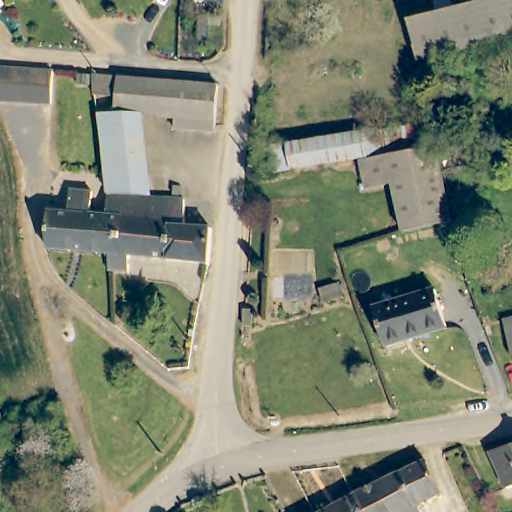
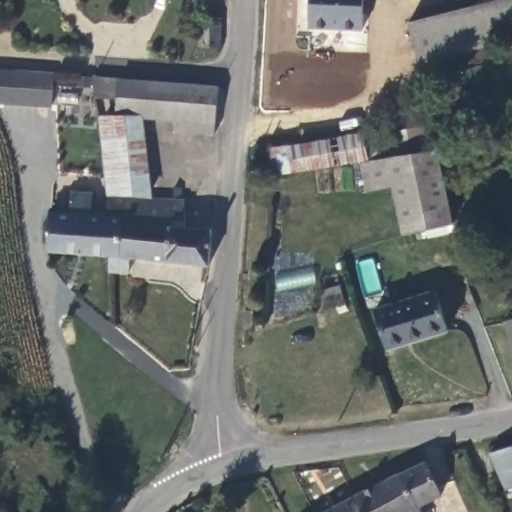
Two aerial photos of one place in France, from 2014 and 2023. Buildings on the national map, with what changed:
new [(365,30),(310,28),(310,0),(365,0),(365,30)]
unchanged [(407,25),(496,0),(512,0),(512,38),(439,60),(443,77),(423,82),(407,25)]
unchanged [(226,46),(206,45),(207,14),(229,15),(226,46)]
unchanged [(0,90),(0,64),(49,66),(53,101),(4,99),(0,90)]
unchanged [(115,114),(116,97),(95,95),(92,71),(107,74),(131,75),(142,76),(139,115),(115,114)]
unchanged [(142,76),(219,81),(215,121),(139,115),(142,76)]
unchanged [(105,139),(102,123),(140,119),(141,134),(149,196),(112,195),(105,139)]
unchanged [(428,125),(432,151),(363,162),(358,135),(428,125)]
unchanged [(286,174),(282,146),(358,135),(363,162),(286,174)]
unchanged [(447,225),(405,235),(394,186),(369,189),(363,162),(432,151),(447,225)]
unchanged [(122,219),(119,256),(110,255),(87,251),(49,247),(51,188),(73,191),(73,181),(74,167),(95,169),(93,193),(106,195),(104,216),(122,219)]
unchanged [(149,196),(186,200),(186,201),(186,224),(174,222),(169,261),(132,257),(130,271),(109,270),(110,255),(119,256),(122,219),(104,216),(106,195),(112,195),(149,196)]
unchanged [(209,266),(169,261),(174,222),(186,224),(212,228),(209,266)]
unchanged [(450,322),(410,337),(411,340),(394,345),(390,331),(383,306),(440,288),(447,311),(450,322)]
unchanged [(512,320),(512,338),(508,321),(512,320)]
unchanged [(11,431),(0,436),(0,403),(11,431)]
unchanged [(492,450),(512,444),(512,485),(507,486),(492,450)]
unchanged [(376,483),(401,471),(423,460),(438,491),(418,503),(420,505),(423,512),(362,512),(352,495),(376,483)]
unchanged [(321,512),(352,495),(362,512),(321,512)]

